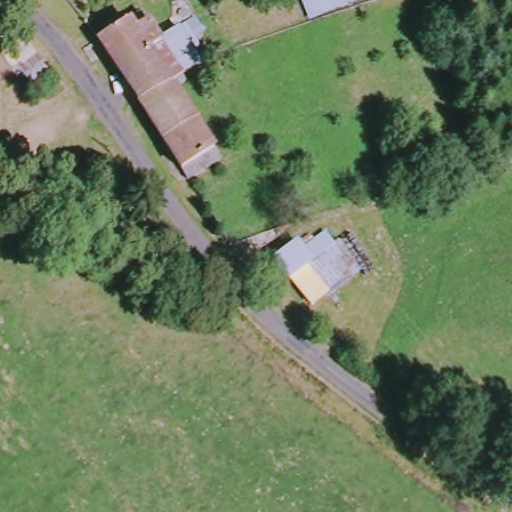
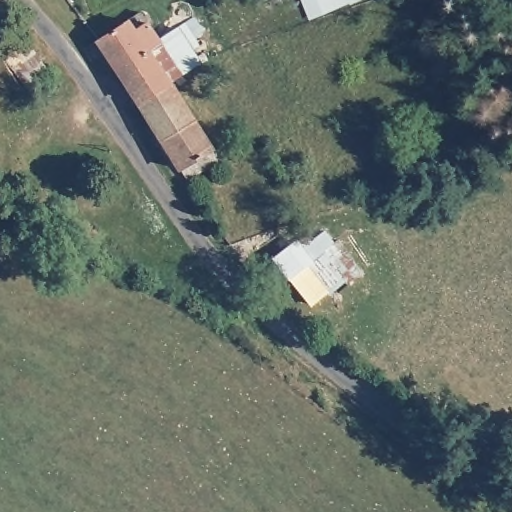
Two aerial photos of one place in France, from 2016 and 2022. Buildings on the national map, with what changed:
unchanged [(304,0),(362,0),(313,23),(304,0)]
unchanged [(187,174),(138,96),(104,43),(91,51),(84,42),(100,33),(133,15),(141,26),(155,18),(166,33),(180,25),(195,47),(191,51),(196,61),(187,69),(190,73),(177,81),(216,142),(222,152),(208,161),(187,174)]
unchanged [(341,288),(327,303),(286,261),(306,242),(322,259),(318,263),(341,288)]

